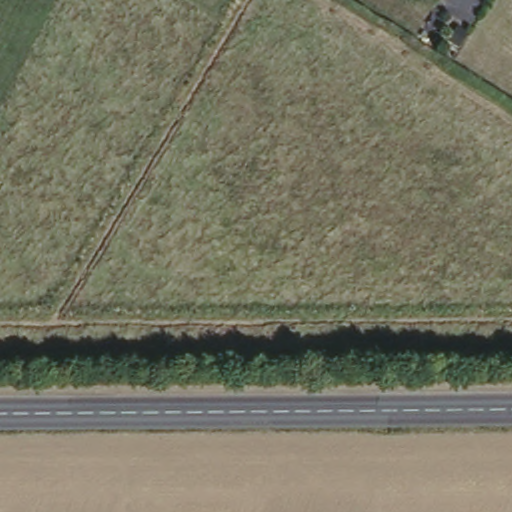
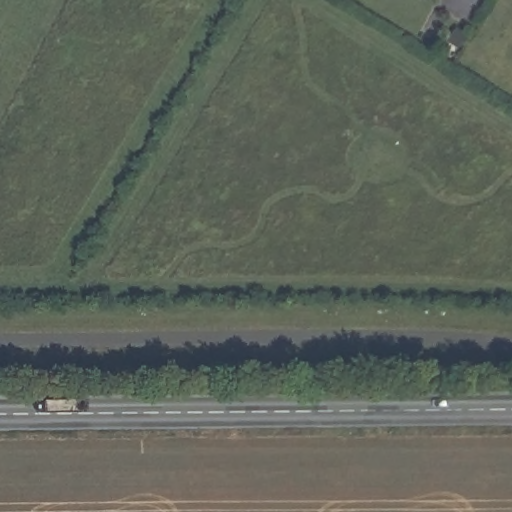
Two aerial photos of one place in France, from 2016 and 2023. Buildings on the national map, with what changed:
[]

